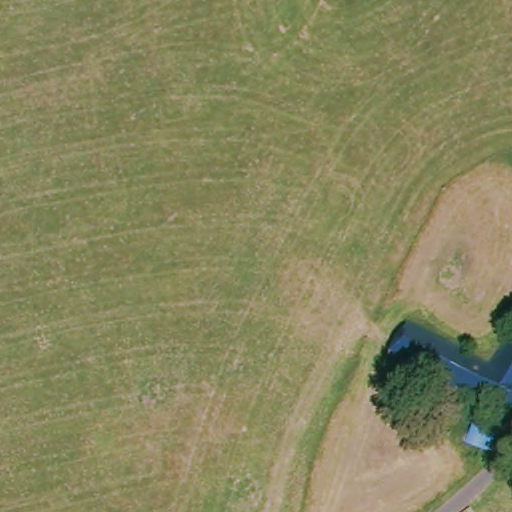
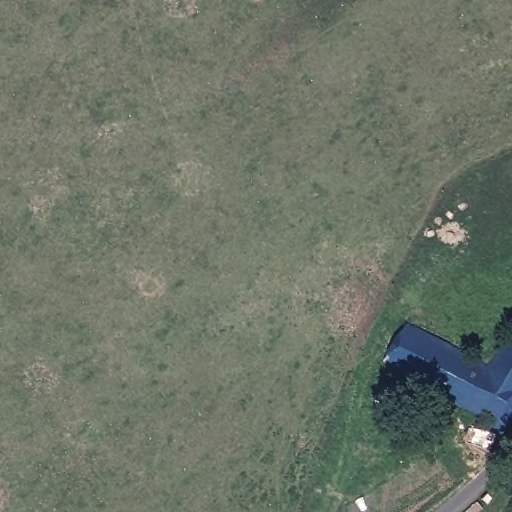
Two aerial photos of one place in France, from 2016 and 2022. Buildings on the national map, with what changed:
unchanged [(477,432),(483,422),(379,362),(402,325),(482,367),(512,331),(512,407),(510,409),(512,413),(512,416),(495,443),(477,432)]

